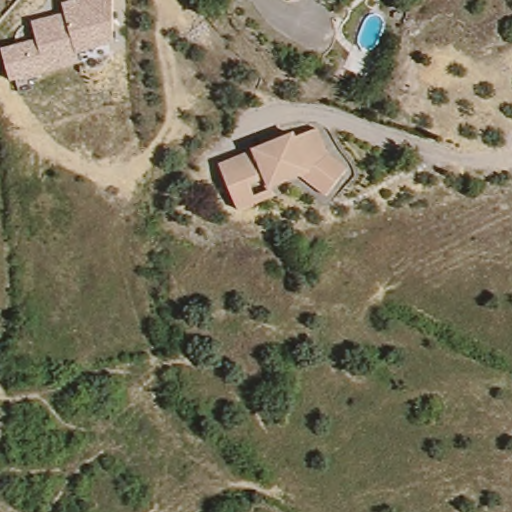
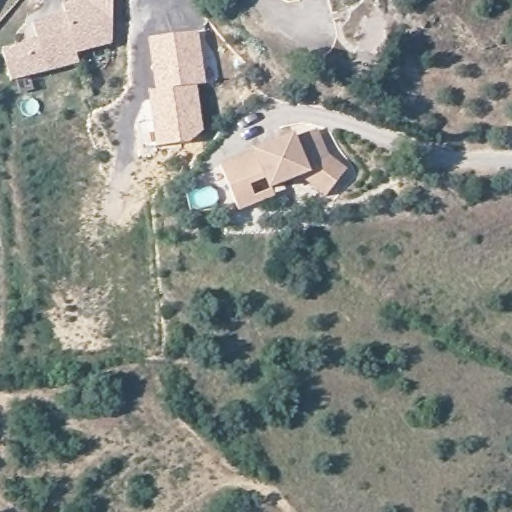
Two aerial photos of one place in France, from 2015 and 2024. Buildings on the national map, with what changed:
unchanged [(78,54),(81,64),(11,83),(2,49),(37,40),(33,22),(66,12),(64,3),(76,0),(115,0),(116,45),(78,54)]
new [(199,30),(206,84),(198,86),(205,135),(181,145),(154,148),(147,90),(153,89),(146,37),(199,30)]
unchanged [(242,216),(221,172),(293,139),(294,142),(315,133),(328,158),(349,169),(338,191),(334,197),(302,179),(273,192),(276,200),(260,208),(242,216)]

